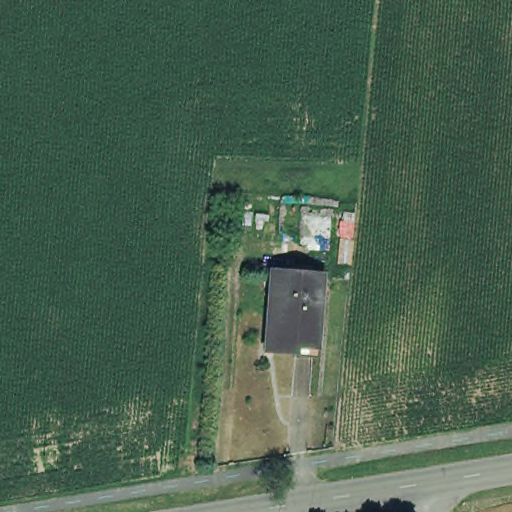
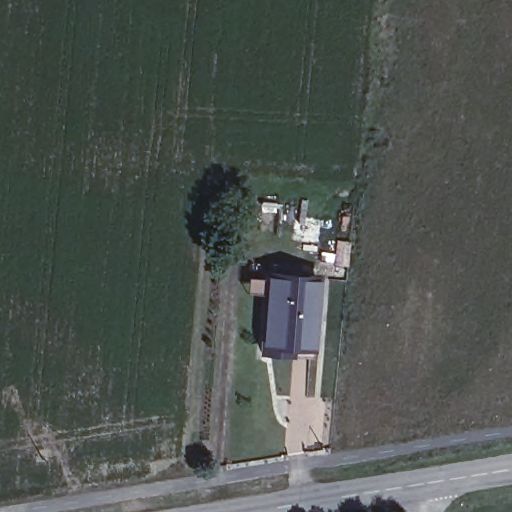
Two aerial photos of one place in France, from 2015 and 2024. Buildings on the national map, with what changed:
unchanged [(268,330),(272,277),(320,281),(315,351),(294,349),(293,355),(275,353),(266,353),(268,330)]

